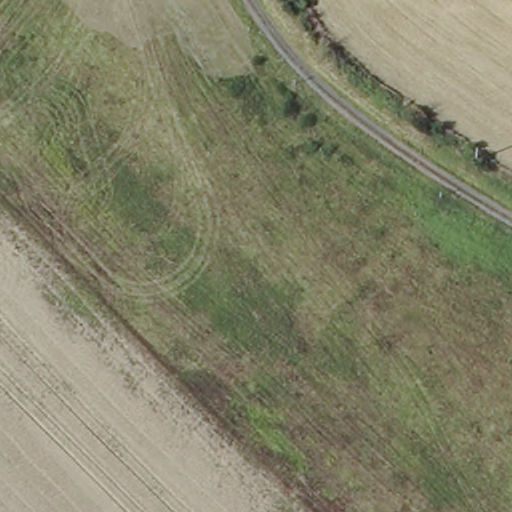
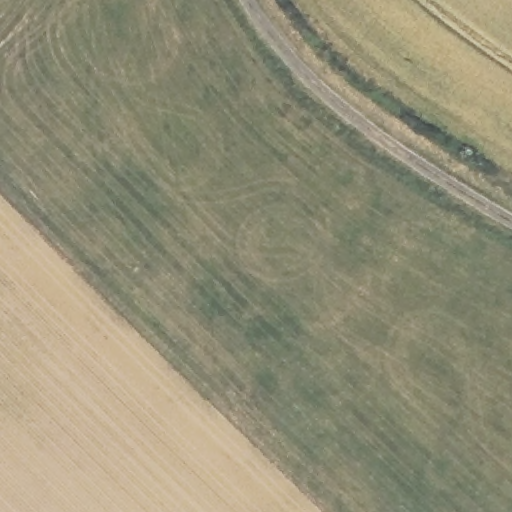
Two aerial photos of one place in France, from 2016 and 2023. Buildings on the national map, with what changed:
[]

